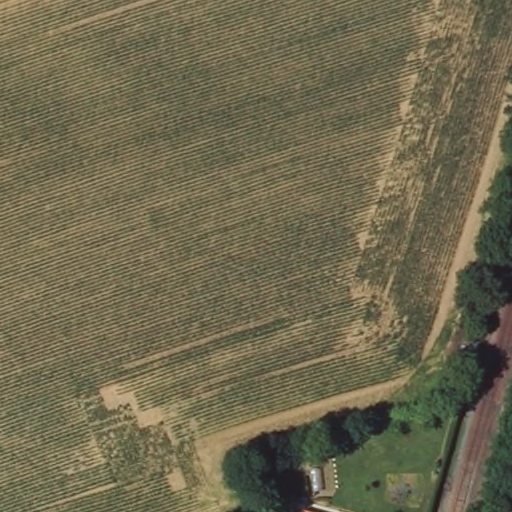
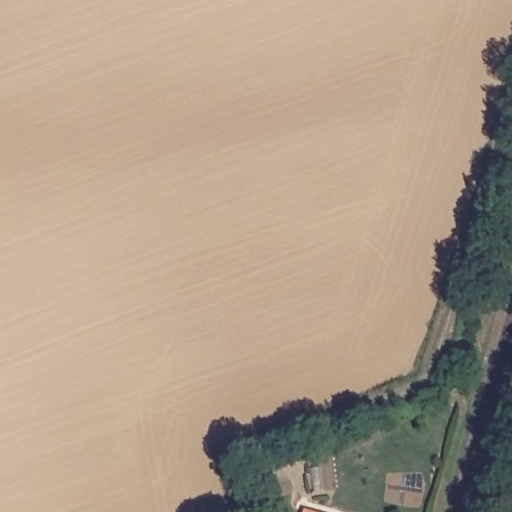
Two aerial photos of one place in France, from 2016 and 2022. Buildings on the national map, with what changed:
unchanged [(316,512),(302,512),(303,509),(316,512)]

